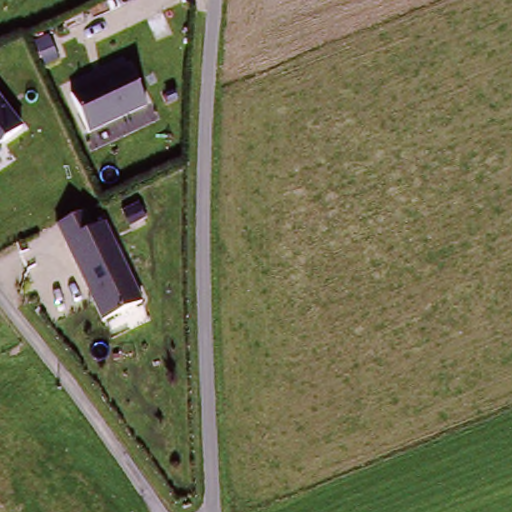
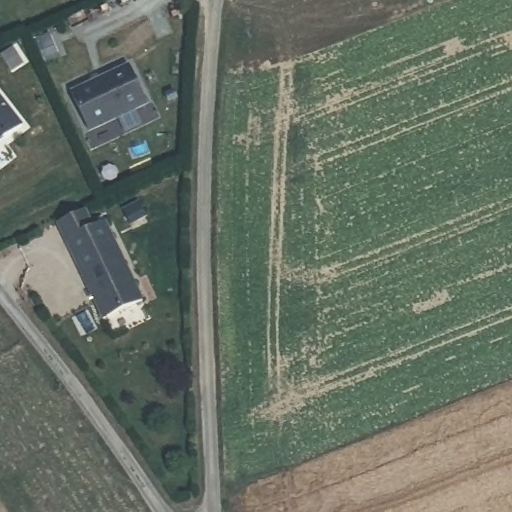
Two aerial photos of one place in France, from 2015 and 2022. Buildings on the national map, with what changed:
unchanged [(127,63),(147,105),(89,132),(70,90),(127,63)]
unchanged [(24,124),(0,140),(0,95),(24,124)]
unchanged [(87,209),(94,225),(107,219),(143,301),(102,320),(57,221),(87,209)]

